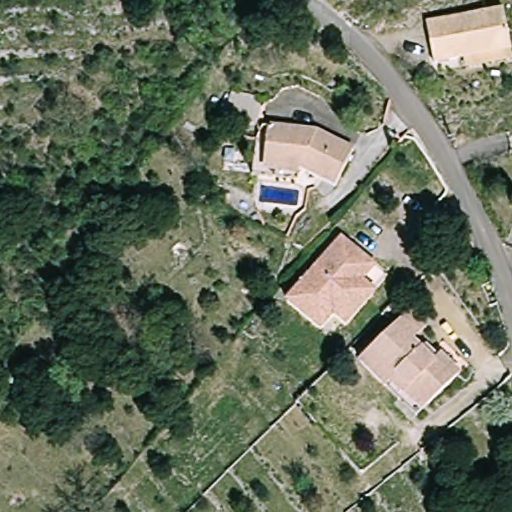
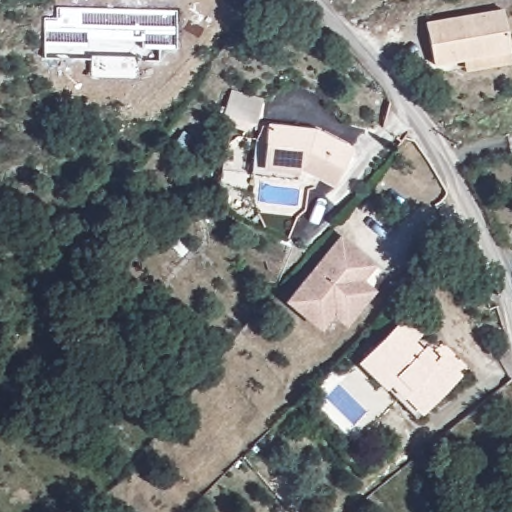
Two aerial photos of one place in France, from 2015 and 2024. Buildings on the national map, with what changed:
new [(158,61),(138,60),(138,76),(90,76),(90,60),(44,59),(45,16),(57,17),(57,7),(177,10),(176,49),(159,49),(158,61)]
unchanged [(472,66),(470,55),(435,56),(431,15),(507,10),(511,51),(512,57),(512,64),(472,66)]
unchanged [(323,125),(365,154),(340,190),(300,165),(267,156),(272,139),(276,127),(280,114),(291,116),(302,120),(323,125)]
unchanged [(261,125),(276,127),(272,139),(267,156),(300,165),(296,181),(251,168),(252,161),(261,125)]
unchanged [(347,328),(333,316),(322,330),(290,300),(312,275),(344,240),(350,244),(378,272),(365,285),(375,296),(370,302),(347,328)]
unchanged [(400,397),(406,390),(397,378),(390,383),(365,352),(404,318),(419,307),(432,325),(417,335),(436,361),(444,355),(462,377),(431,405),(417,415),(400,397)]

